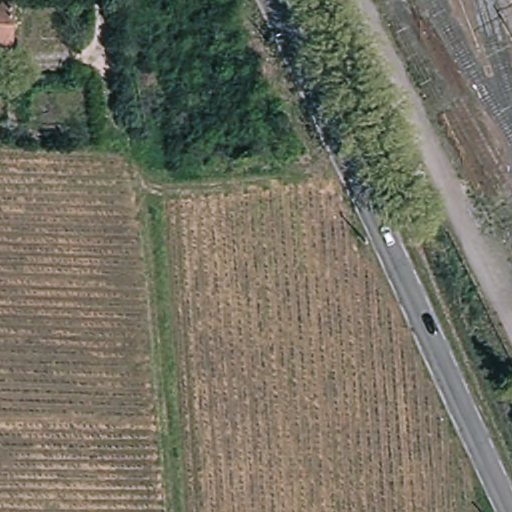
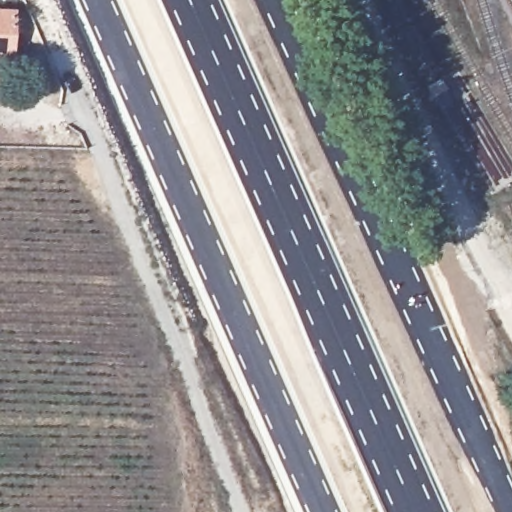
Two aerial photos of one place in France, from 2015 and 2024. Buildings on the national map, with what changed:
unchanged [(13,50),(0,49),(0,8),(15,8),(13,50)]

